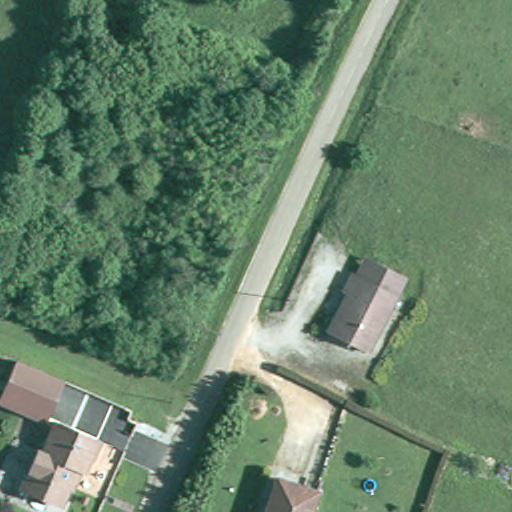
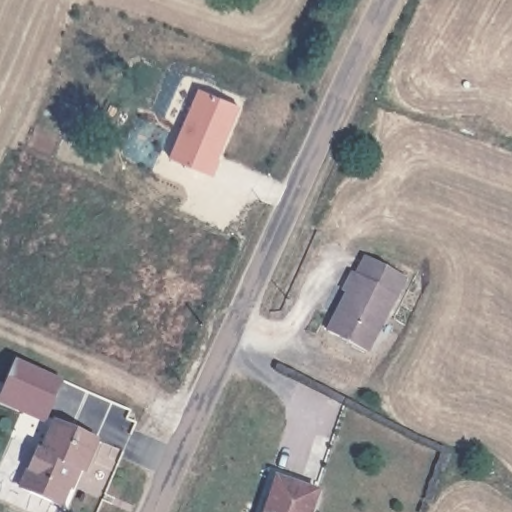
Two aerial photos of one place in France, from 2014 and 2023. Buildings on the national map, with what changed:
new [(198,88),(239,105),(216,158),(220,160),(213,177),(168,158),(198,88)]
unchanged [(330,333),(351,293),(344,290),(354,272),(361,275),(369,257),(409,276),(399,294),(370,354),(330,333)]
unchanged [(21,363),(66,382),(62,391),(50,419),(4,400),(16,372),(20,363),(21,363)]
unchanged [(99,441),(85,471),(75,467),(60,502),(22,485),(42,441),(49,444),(59,423),(99,441)]
unchanged [(321,493),(315,512),(268,512),(279,478),(321,493)]

